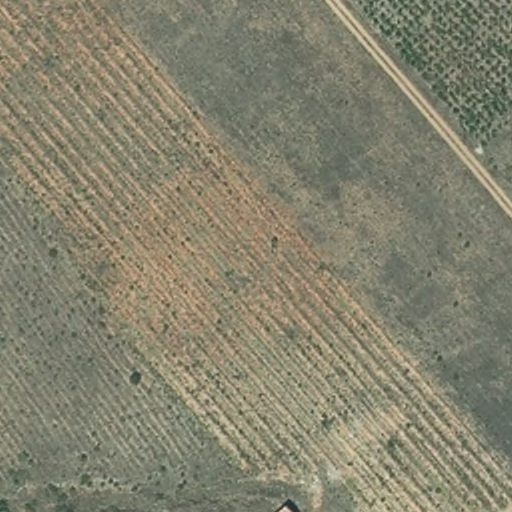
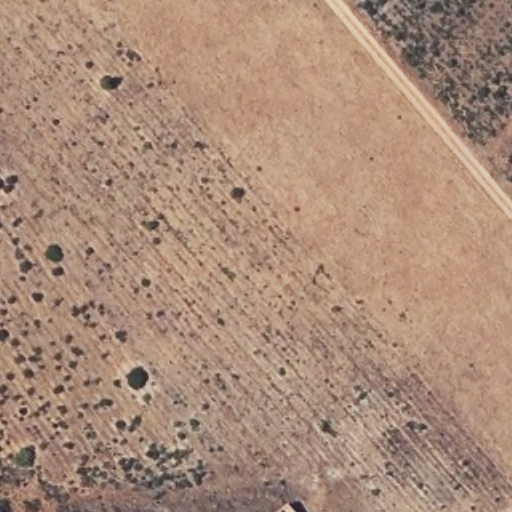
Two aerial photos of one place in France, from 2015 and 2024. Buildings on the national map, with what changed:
unchanged [(289,503),(297,512),(277,512),(289,503)]

